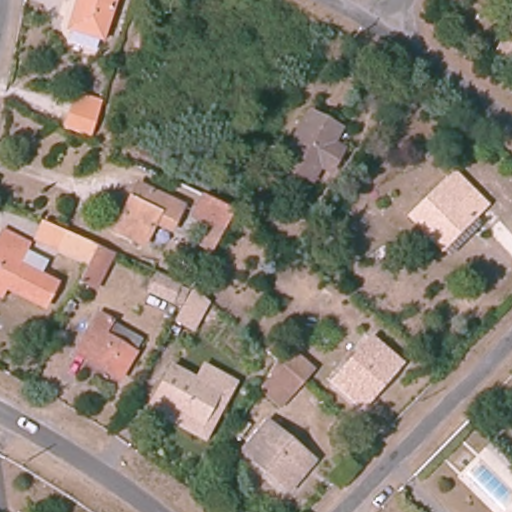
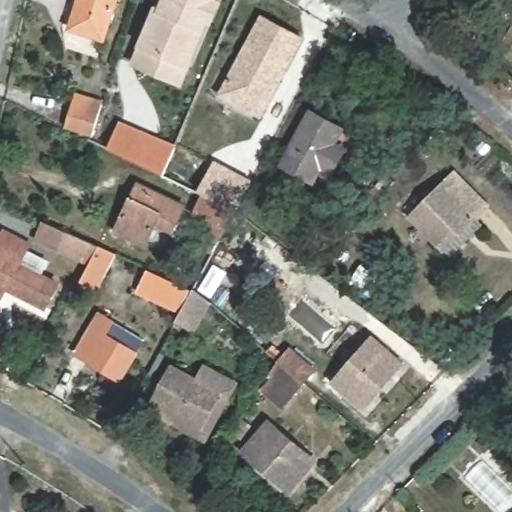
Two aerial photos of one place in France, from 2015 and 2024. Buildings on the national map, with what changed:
unchanged [(97,46),(65,35),(76,0),(113,0),(97,46)]
new [(163,0),(218,0),(190,65),(144,45),(163,0)]
new [(261,15),(305,39),(262,119),(219,96),(261,15)]
unchanged [(512,41),(512,61),(503,56),(512,41)]
new [(144,45),(190,65),(182,84),(136,64),(144,45)]
unchanged [(74,100),(76,91),(100,102),(98,111),(90,136),(66,125),(74,100)]
unchanged [(332,170),(322,165),(317,161),(308,176),(280,161),(310,110),(337,125),(330,138),(335,140),(345,145),(332,170)]
new [(165,175),(110,149),(120,121),(177,145),(165,175)]
new [(252,180),(235,212),(199,193),(215,160),(252,180)]
unchanged [(485,203),(443,245),(413,214),(427,200),(442,185),(455,172),(485,203)]
unchanged [(174,230),(156,222),(144,246),(114,231),(132,197),(138,186),(166,200),(182,209),(174,230)]
unchanged [(221,230),(193,216),(201,199),(230,214),(221,230)]
unchanged [(76,278),(85,263),(54,249),(62,230),(94,245),(110,251),(92,286),(76,278)]
unchanged [(28,245),(17,266),(56,286),(44,310),(0,287),(0,240),(4,233),(28,245)]
unchanged [(196,335),(172,321),(180,305),(145,289),(155,266),(191,285),(212,302),(196,335)]
unchanged [(100,313),(140,338),(117,376),(79,351),(100,313)]
unchanged [(400,368),(359,410),(331,385),(370,343),(400,368)]
unchanged [(268,375),(278,360),(288,347),(315,370),(305,382),(291,397),(268,375)]
unchanged [(208,441),(147,408),(172,364),(195,376),(205,362),(239,382),(208,441)]
unchanged [(288,490),(245,454),(271,422),(315,460),(288,490)]

